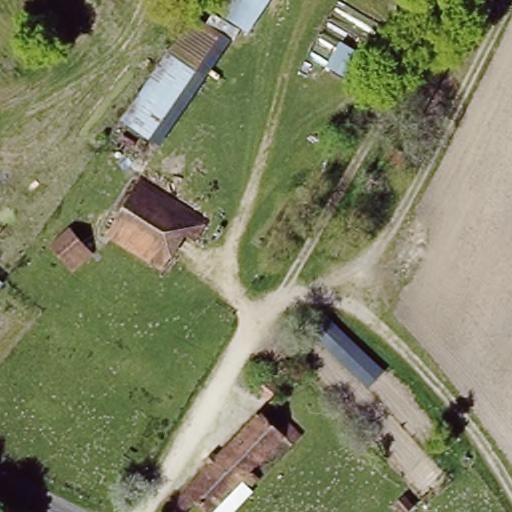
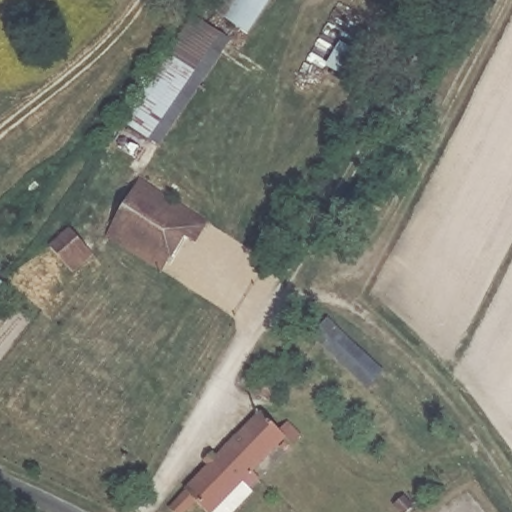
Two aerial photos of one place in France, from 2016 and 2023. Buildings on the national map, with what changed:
unchanged [(198,0),(259,0),(156,148),(117,116),(198,0)]
unchanged [(206,222),(193,245),(177,237),(155,272),(104,241),(137,181),(206,222)]
unchanged [(89,256),(70,272),(44,244),(62,227),(89,256)]
unchanged [(383,373),(367,390),(311,336),(327,318),(383,373)]
unchanged [(268,399),(259,408),(249,399),(257,389),(268,399)]
unchanged [(260,417),(267,411),(274,418),(267,425),(278,436),(286,428),(297,442),(279,462),(270,453),(207,512),(197,512),(189,503),(178,512),(168,512),(162,506),(257,414),(260,417)]

